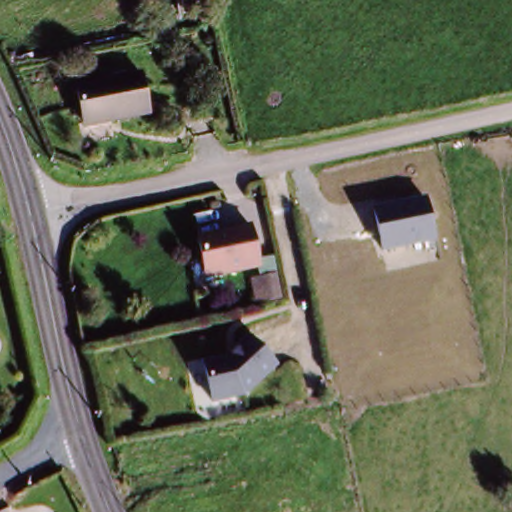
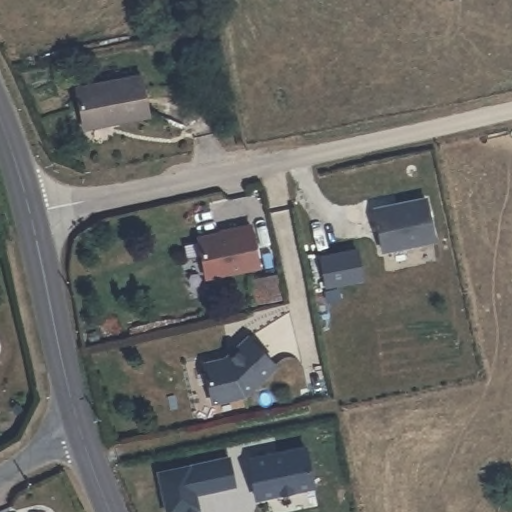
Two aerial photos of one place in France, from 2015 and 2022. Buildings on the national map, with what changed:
unchanged [(79,125),(71,89),(136,76),(144,117),(105,125),(80,129),(79,125)]
unchanged [(372,207),(427,196),(435,240),(381,251),(372,207)]
unchanged [(227,233),(227,232),(245,229),(253,271),(200,282),(192,240),(227,233)]
new [(355,247),(361,276),(325,283),(319,254),(355,247)]
unchanged [(275,368),(241,396),(210,402),(202,362),(230,357),(237,351),(235,348),(247,336),(275,368)]
new [(305,447),(312,484),(255,496),(248,459),(305,447)]
new [(165,512),(156,475),(227,460),(232,488),(193,497),(196,512),(165,512)]

